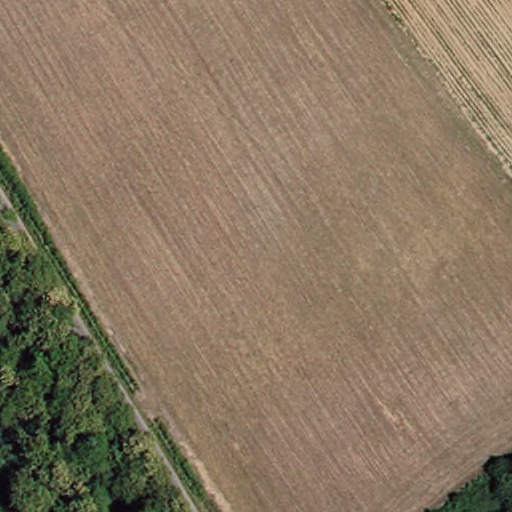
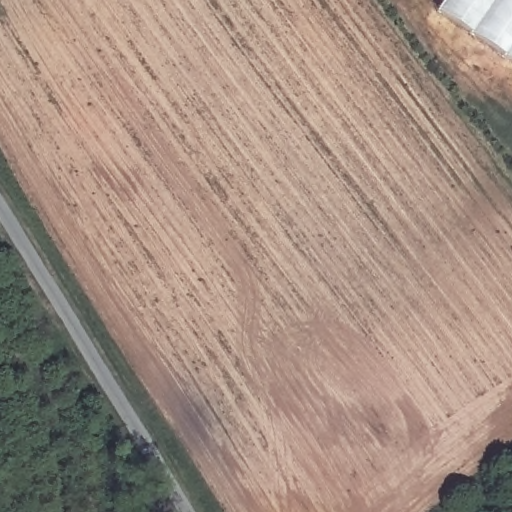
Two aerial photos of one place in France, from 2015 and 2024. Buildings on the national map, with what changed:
new [(437,11),(444,0),(512,0),(512,62),(437,11)]

